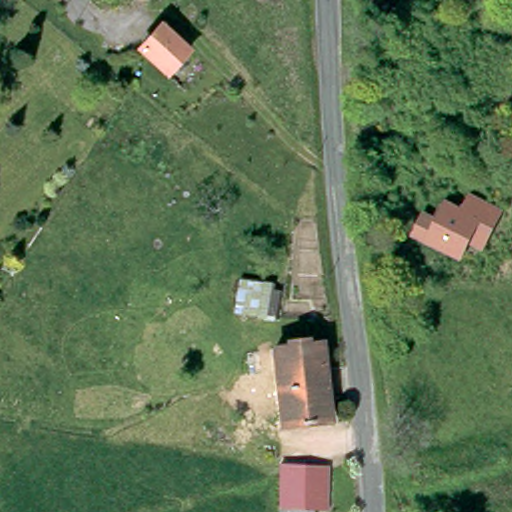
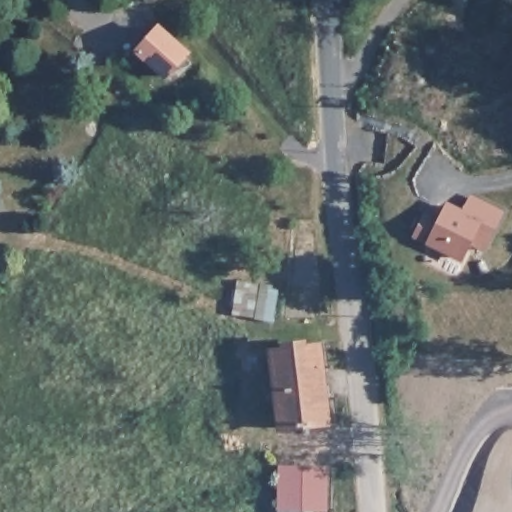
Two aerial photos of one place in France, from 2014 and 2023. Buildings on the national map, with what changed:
unchanged [(192,52),(171,79),(139,53),(160,25),(192,52)]
unchanged [(505,208),(489,253),(474,248),(469,263),(413,242),(422,218),(441,224),(448,202),(464,209),(469,196),(505,208)]
unchanged [(272,325),(234,327),(237,284),(275,290),(272,325)]
unchanged [(278,343),(321,340),(328,418),(283,418),(265,418),(263,401),(281,397),(278,343)]
unchanged [(332,468),(328,512),(323,512),(314,511),(314,512),(279,512),(286,461),(320,466),(332,468)]

